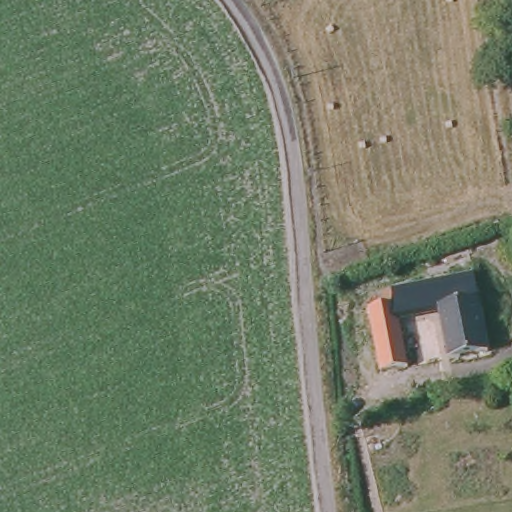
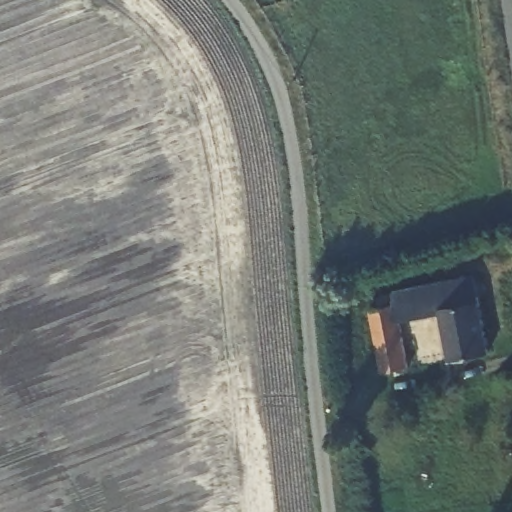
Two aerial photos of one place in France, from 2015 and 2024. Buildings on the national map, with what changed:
unchanged [(488,354),(448,358),(442,315),(403,320),(409,366),(384,369),(377,308),(399,306),(399,292),(476,279),(488,354)]

